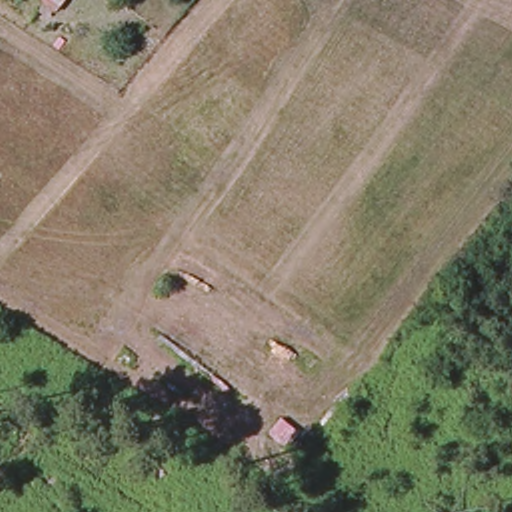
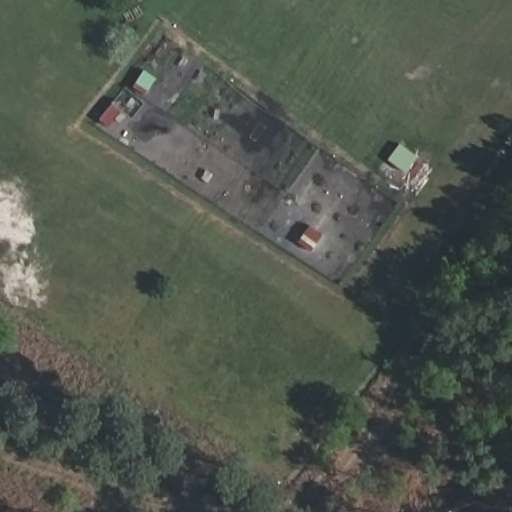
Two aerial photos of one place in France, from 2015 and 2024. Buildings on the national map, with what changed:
unchanged [(36,0),(65,0),(51,17),(36,0)]

